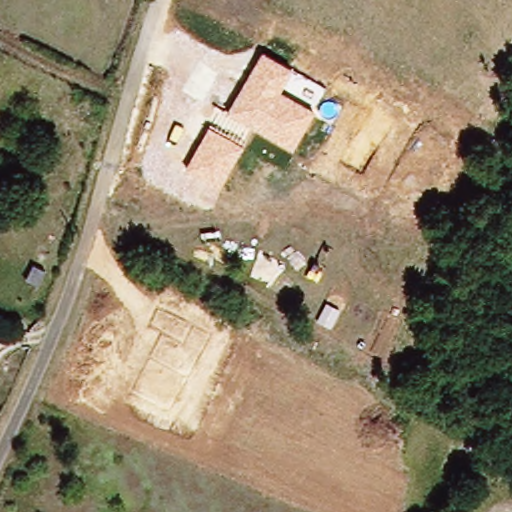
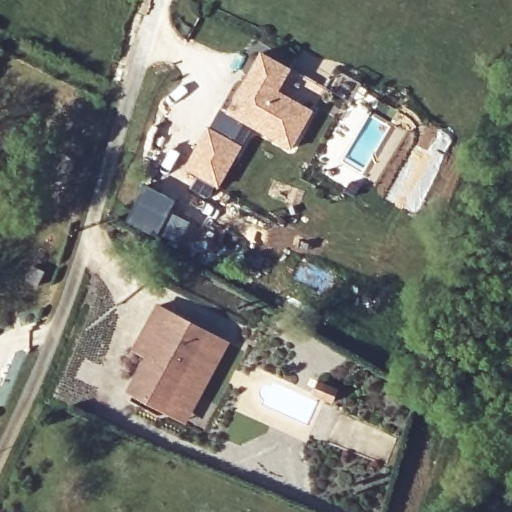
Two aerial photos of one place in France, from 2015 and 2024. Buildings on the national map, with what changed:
unchanged [(293,70),(280,91),(316,110),(292,151),(226,112),(261,52),(293,70)]
unchanged [(243,146),(218,191),(182,172),(208,126),(243,146)]
new [(178,195),(156,235),(126,221),(146,181),(178,195)]
new [(157,302),(229,342),(186,425),(128,391),(146,357),(133,349),(157,302)]

